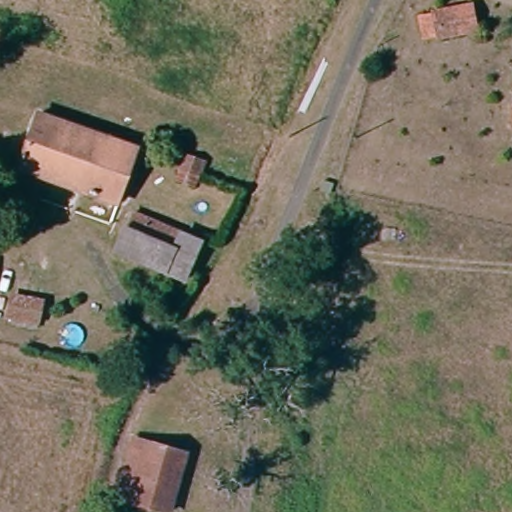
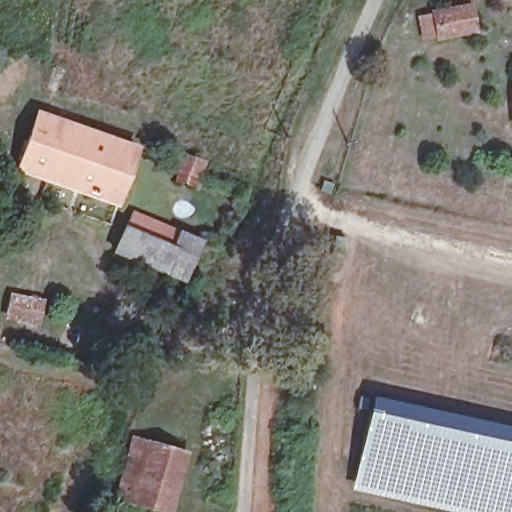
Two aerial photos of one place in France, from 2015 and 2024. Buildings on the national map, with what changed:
unchanged [(476,15),(476,39),(440,38),(440,15),(476,15)]
unchanged [(120,195),(116,205),(18,169),(36,119),(125,150),(136,155),(120,195)]
unchanged [(186,159),(201,164),(197,172),(192,185),(177,180),(182,166),(186,159)]
unchanged [(205,247),(188,284),(119,252),(135,216),(205,247)]
unchanged [(43,305),(39,322),(9,312),(15,295),(43,305)]
new [(512,512),(454,512),(352,490),(373,395),(512,427),(512,512)]
unchanged [(139,506),(120,500),(136,441),(156,446),(139,506)]
unchanged [(190,455),(173,512),(160,512),(139,506),(156,446),(190,455)]

